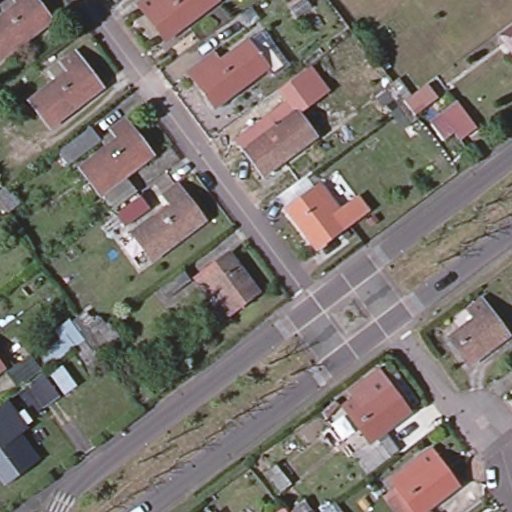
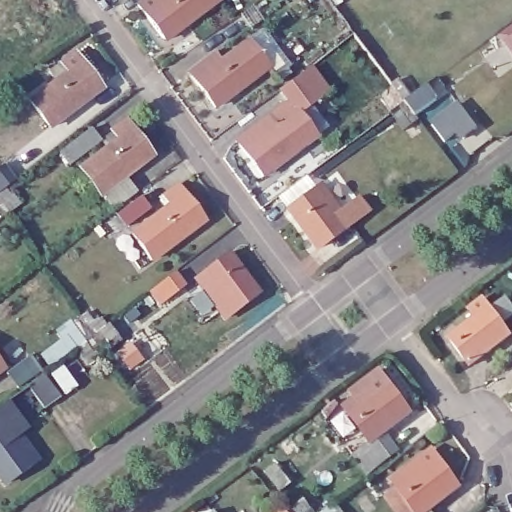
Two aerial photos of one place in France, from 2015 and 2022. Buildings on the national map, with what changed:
demolished [(0,63),(0,22),(20,7),(14,0),(36,0),(52,22),(0,64),(0,63)]
unchanged [(160,0),(177,0),(218,0),(223,7),(171,45),(145,11),(160,0)]
unchanged [(509,39),(512,37),(512,43),(509,39)]
unchanged [(193,62),(200,71),(238,43),(245,51),(258,41),(275,65),(262,75),(257,69),(205,107),(180,73),(193,62)]
unchanged [(50,125),(31,100),(70,70),(63,61),(77,50),(102,84),(50,125)]
unchanged [(426,92),(433,100),(437,106),(416,122),(418,125),(411,130),(398,113),(385,96),(392,91),(400,85),(412,102),(426,92)]
unchanged [(315,135),(262,173),(237,138),(251,127),(258,136),(296,108),(315,135)]
unchanged [(459,110),(477,134),(464,143),(446,119),(459,110)]
unchanged [(81,167),(119,136),(113,128),(126,117),(152,150),(100,191),(81,167)]
unchanged [(74,167),(66,157),(91,137),(100,147),(74,167)]
unchanged [(152,257),(132,232),(170,202),(164,194),(177,184),(203,218),(152,257)]
unchanged [(288,213),(314,194),(323,207),(330,202),(350,229),(317,252),(288,213)]
unchanged [(124,233),(116,221),(141,202),(149,213),(124,233)]
unchanged [(3,227),(0,230),(0,208),(10,221),(3,227)]
unchanged [(257,290),(227,315),(207,288),(213,284),(203,271),(229,252),(257,290)]
unchanged [(192,289),(170,306),(160,292),(181,275),(192,289)]
unchanged [(444,338),(470,318),(463,310),(477,300),(502,334),(463,364),(444,338)]
unchanged [(66,364),(65,365),(59,370),(52,361),(60,355),(68,349),(62,341),(78,329),(85,323),(111,358),(104,363),(97,369),(85,351),(66,364)]
unchanged [(508,330),(512,327),(512,336),(508,330)]
unchanged [(28,351),(40,367),(16,384),(5,369),(28,351)]
unchanged [(0,366),(0,362),(1,364),(0,366)]
unchanged [(42,370),(58,393),(42,404),(26,382),(42,370)]
unchanged [(353,389),(369,378),(374,385),(387,375),(414,410),(374,438),(347,403),(358,396),(353,389)]
unchanged [(16,430),(15,429),(10,433),(0,421),(0,401),(3,398),(24,425),(16,430)]
unchanged [(3,480),(0,475),(0,421),(10,433),(15,429),(16,430),(35,456),(3,480)]
unchanged [(393,434),(403,447),(371,470),(362,458),(393,434)]
unchanged [(391,482),(431,453),(457,488),(425,512),(414,512),(391,482)]
unchanged [(263,473),(274,465),(289,484),(278,492),(263,473)]
unchanged [(294,510),(292,508),(302,500),(311,512),(292,512),(294,510)]
unchanged [(332,504),(338,512),(322,512),(332,504)]

